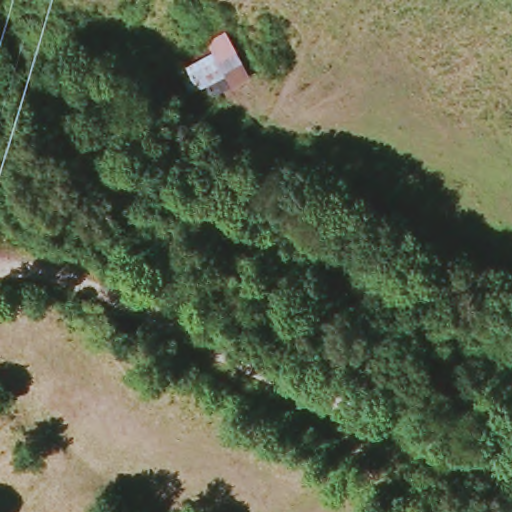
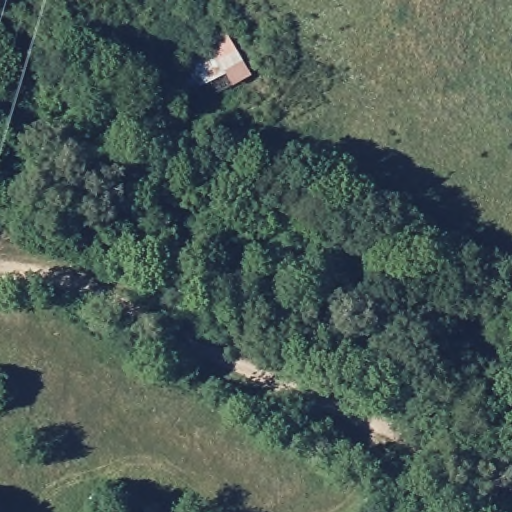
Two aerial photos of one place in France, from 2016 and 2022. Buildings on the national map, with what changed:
unchanged [(177,71),(214,51),(233,89),(195,105),(177,71)]

